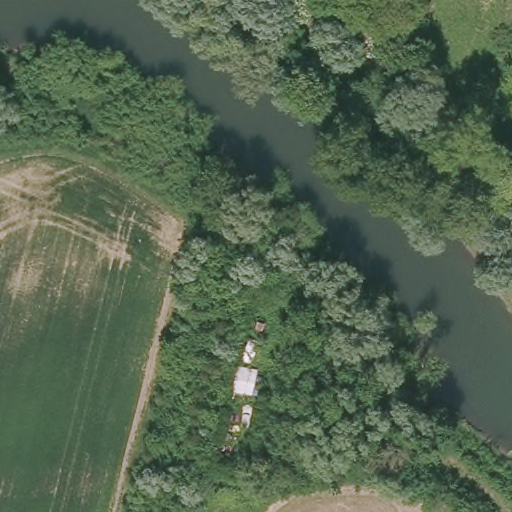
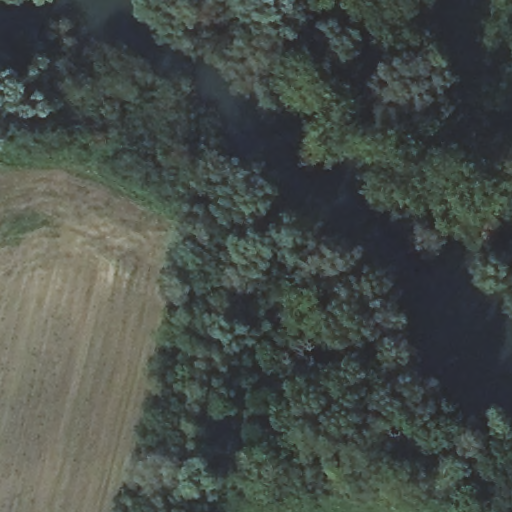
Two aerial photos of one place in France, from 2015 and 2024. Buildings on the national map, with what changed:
unchanged [(324,21),(334,4),(359,20),(349,37),(324,21)]

